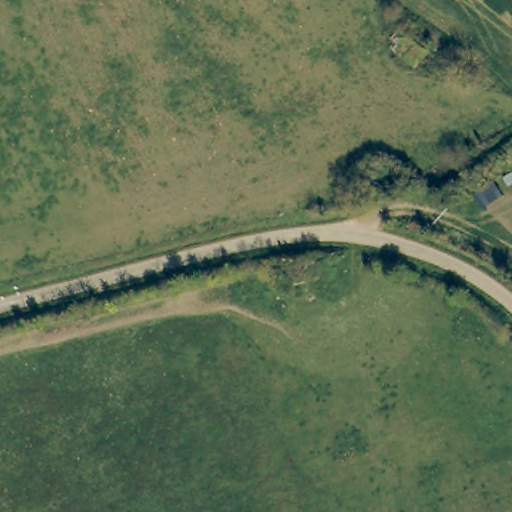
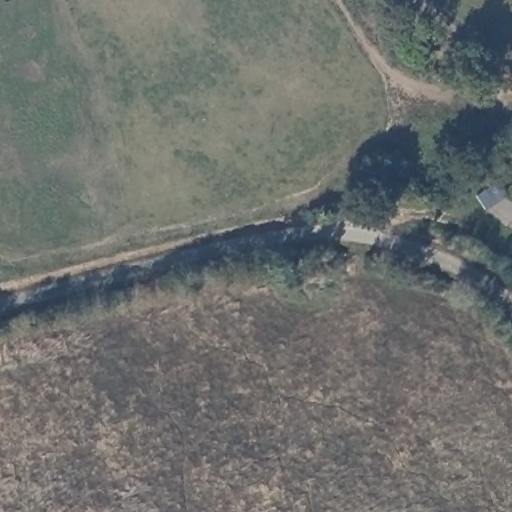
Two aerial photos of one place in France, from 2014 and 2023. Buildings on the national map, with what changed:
unchanged [(394,162),(410,190),(374,205),(359,177),(394,162)]
unchanged [(335,252),(341,273),(285,287),(278,263),(335,252)]

